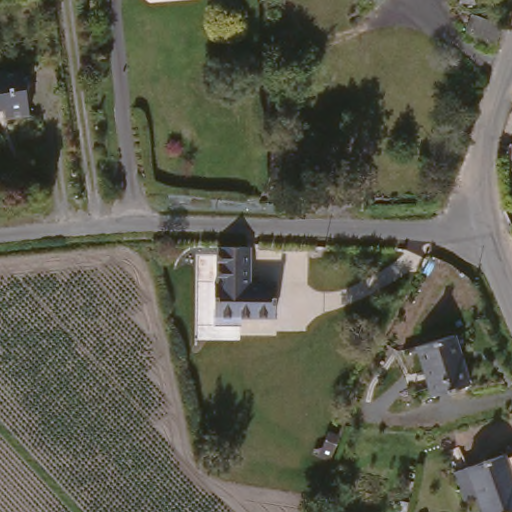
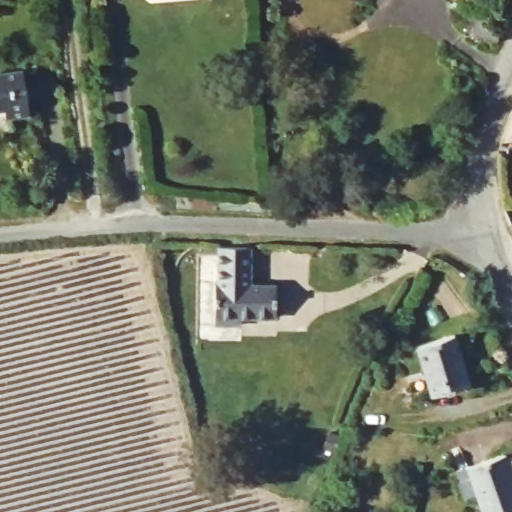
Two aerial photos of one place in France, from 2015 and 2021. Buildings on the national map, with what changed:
unchanged [(485,15),(473,15),(462,13),(463,0),(487,0),(485,15)]
unchanged [(505,25),(498,42),(468,32),(473,15),(505,25)]
unchanged [(0,112),(0,73),(20,69),(28,119),(3,124),(1,112),(0,112)]
unchanged [(512,137),(512,148),(508,146),(512,137)]
unchanged [(241,319),(241,332),(211,333),(215,245),(245,246),(243,288),(271,289),(268,316),(241,319)]
unchanged [(414,350),(446,335),(466,383),(433,397),(414,350)]
unchanged [(475,512),(459,473),(494,458),(497,465),(509,458),(512,465),(512,512),(511,512),(475,512)]

